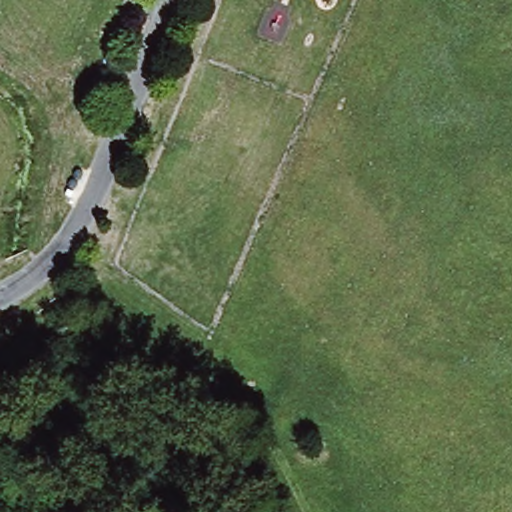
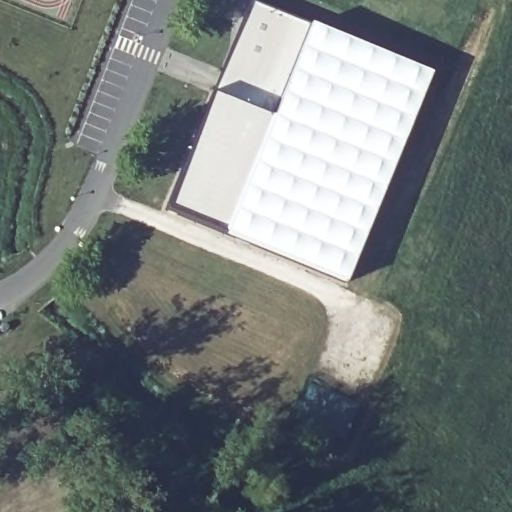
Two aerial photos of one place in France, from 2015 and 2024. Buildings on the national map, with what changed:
new [(250,3),(310,24),(430,75),(345,285),(166,210),(213,95),(250,3)]

